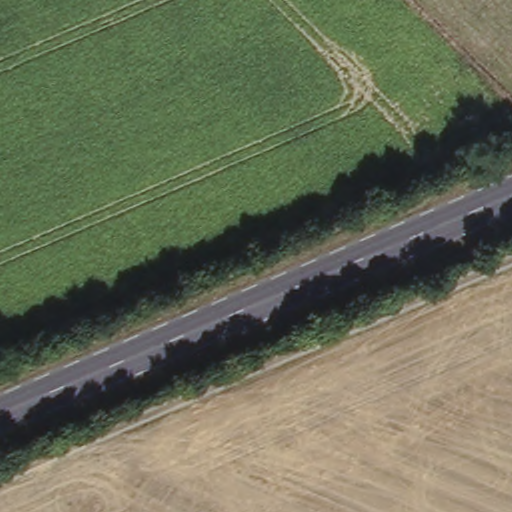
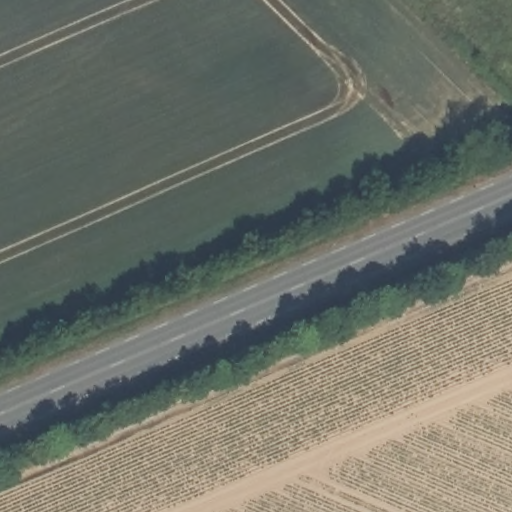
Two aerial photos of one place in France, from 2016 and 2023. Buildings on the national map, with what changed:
[]

